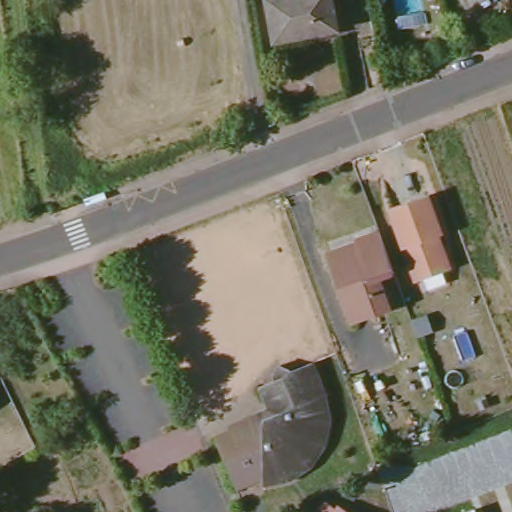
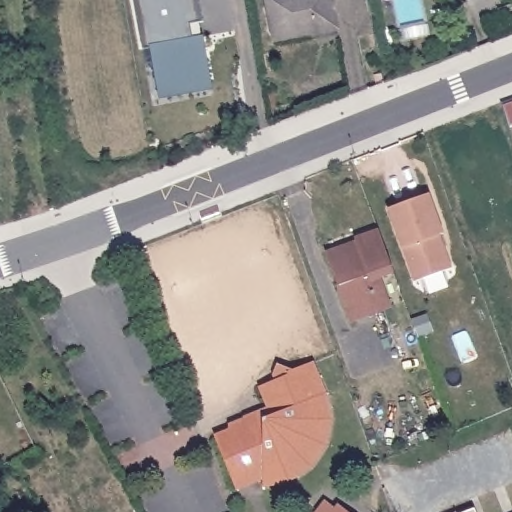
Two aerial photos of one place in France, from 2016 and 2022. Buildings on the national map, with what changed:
new [(203,20),(197,22),(200,36),(202,36),(212,91),(158,100),(150,47),(143,49),(134,0),(200,0),(203,20)]
unchanged [(276,39),(269,0),(332,0),(337,27),(276,39)]
unchanged [(433,196),(446,235),(440,237),(442,246),(446,249),(454,270),(418,282),(393,210),(433,196)]
unchanged [(328,257),(325,247),(353,237),(378,229),(393,272),(376,278),(386,307),(350,320),(328,257)]
unchanged [(428,316),(433,333),(420,338),(413,321),(428,316)]
unchanged [(226,434),(226,427),(246,420),(245,417),(273,406),(271,400),(265,402),(260,386),(275,381),(280,367),(287,372),(311,363),(325,398),(327,425),(323,444),(311,462),(287,479),(265,483),(262,476),(235,487),(218,445),(216,438),(226,434)]
unchanged [(347,512),(332,512),(338,505),(347,512)]
unchanged [(477,512),(469,512),(476,510),(477,512)]

